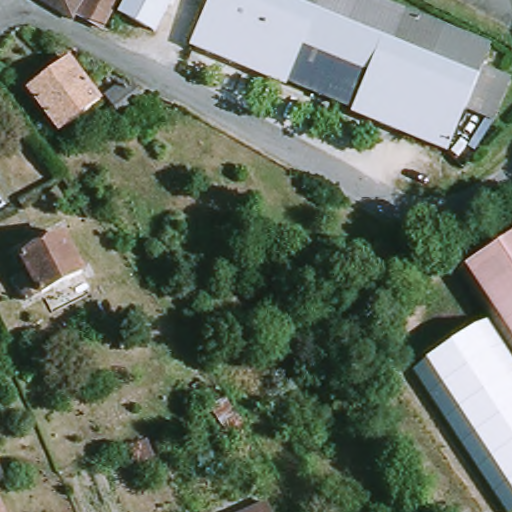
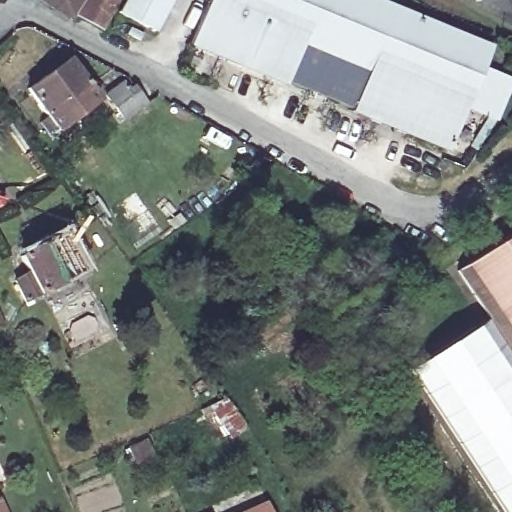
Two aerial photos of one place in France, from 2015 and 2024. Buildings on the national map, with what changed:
unchanged [(37,2),(37,0),(54,0),(49,9),(37,2)]
unchanged [(67,20),(49,9),(54,0),(93,0),(80,20),(76,25),(67,20)]
unchanged [(80,20),(93,0),(122,0),(105,32),(80,20)]
unchanged [(131,0),(176,0),(159,33),(123,15),(130,2),(131,0)]
unchanged [(364,0),(364,1),(420,25),(486,52),(479,70),(462,114),(369,75),(353,110),(284,81),(298,45),(206,6),(208,0),(364,0)]
unchanged [(282,86),(188,46),(206,6),(298,45),(284,81),(282,86)]
unchanged [(67,62),(98,104),(58,134),(27,94),(67,62)]
unchanged [(462,114),(479,70),(506,84),(493,127),(462,114)]
unchanged [(461,117),(446,154),(387,131),(351,117),(353,110),(369,75),(462,114),(461,117)]
unchanged [(122,87),(127,95),(130,92),(133,97),(135,95),(144,107),(121,124),(104,100),(122,87)]
unchanged [(393,227),(413,252),(379,282),(359,257),(393,227)]
unchanged [(491,322),(456,276),(512,239),(512,356),(491,322)]
unchanged [(62,240),(82,276),(24,304),(14,286),(28,277),(20,262),(62,240)]
unchanged [(266,314),(282,302),(295,319),(272,337),(259,318),(266,314)]
unchanged [(512,356),(512,512),(492,512),(403,372),(491,322),(512,356)]
unchanged [(0,506),(3,512),(0,512),(0,506)]
unchanged [(267,512),(251,512),(264,507),(267,512)]

